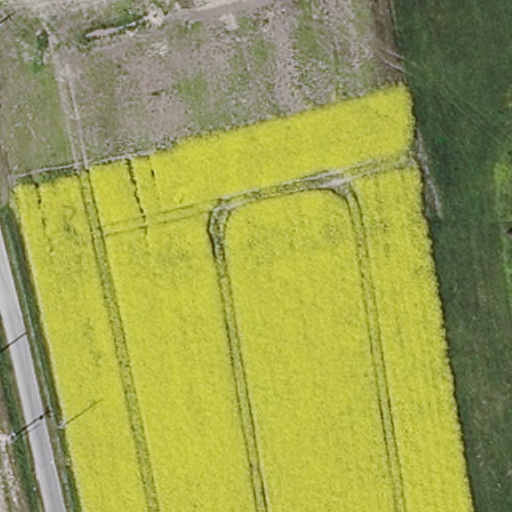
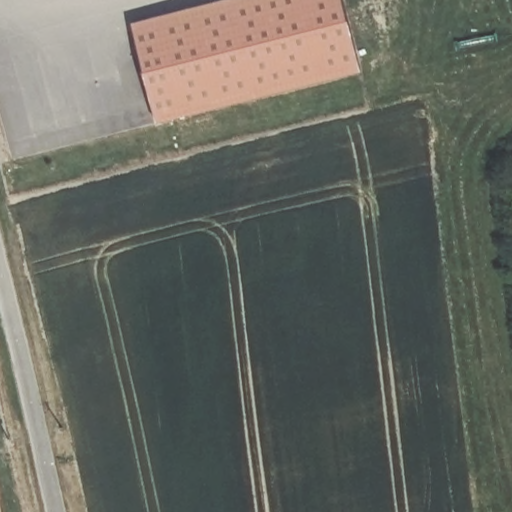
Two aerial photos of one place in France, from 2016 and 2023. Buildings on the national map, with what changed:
new [(158,123),(133,24),(228,0),(344,0),(364,73),(158,123)]

